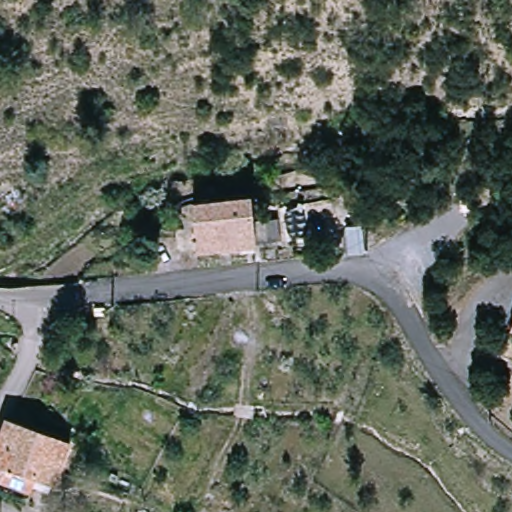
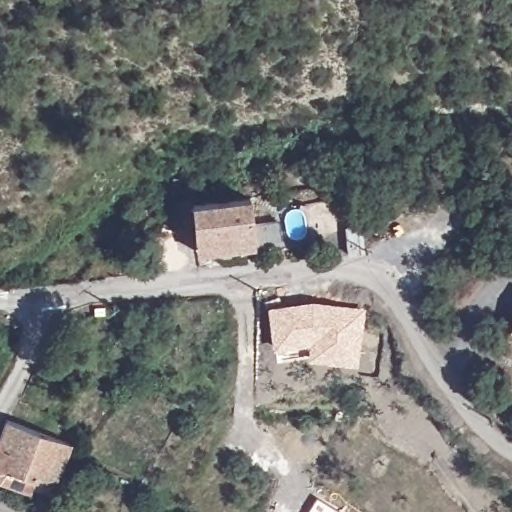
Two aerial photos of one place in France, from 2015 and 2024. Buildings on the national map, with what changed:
unchanged [(196,249),(190,202),(217,198),(252,194),(259,244),(196,249)]
unchanged [(342,221),(340,211),(353,209),(360,243),(334,245),(330,224),(342,221)]
new [(308,344),(274,350),(268,305),(312,300),(365,307),(356,366),(308,360),(308,344)]
unchanged [(512,322),(511,321),(512,321),(512,322)]
unchanged [(13,418),(73,443),(57,487),(30,477),(25,491),(0,483),(0,453),(13,418)]
new [(342,512),(306,512),(316,496),(342,512)]

